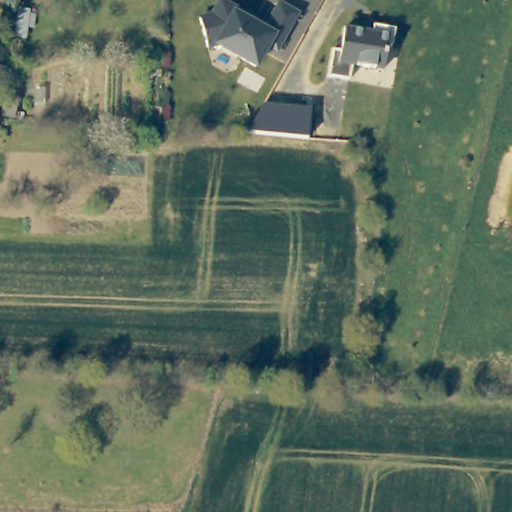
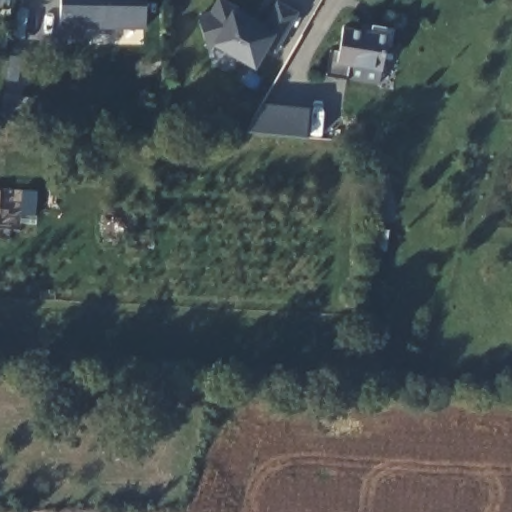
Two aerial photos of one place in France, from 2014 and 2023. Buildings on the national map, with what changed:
new [(61,0),(146,0),(146,29),(61,28),(61,0)]
unchanged [(217,0),(222,0),(235,7),(233,11),(262,28),(277,2),(295,11),(274,47),(266,43),(254,64),(215,41),(205,44),(198,15),(211,11),(217,0)]
unchanged [(366,25),(367,17),(389,20),(387,37),(382,36),(380,61),(349,60),(348,74),(326,72),(328,45),(336,45),(338,23),(366,25)]
unchanged [(248,131),(264,102),(310,105),(308,138),(248,131)]

